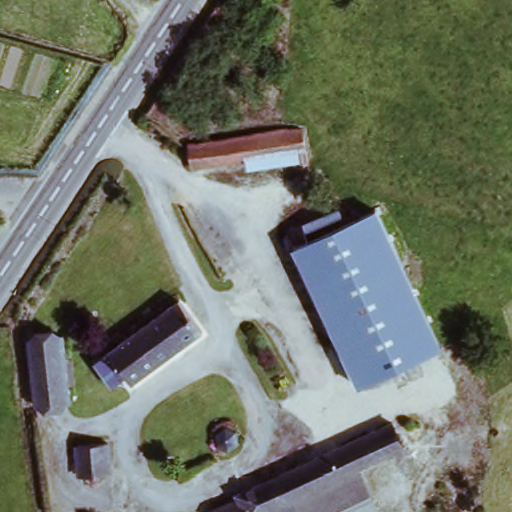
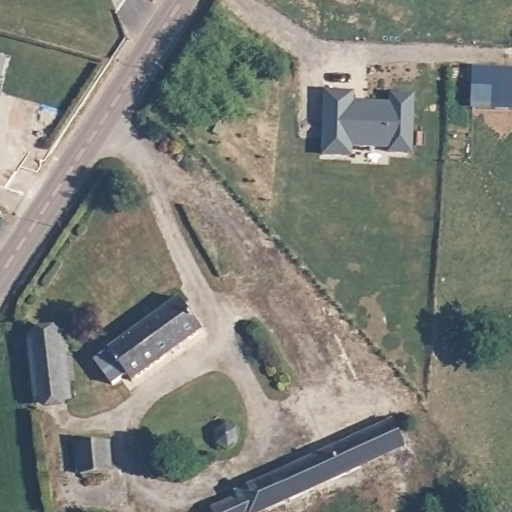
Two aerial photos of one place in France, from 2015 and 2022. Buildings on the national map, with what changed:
new [(482,75),(512,76),(512,107),(481,106),(482,75)]
new [(357,94),(358,104),(391,104),(391,95),(417,95),(415,155),(389,155),(389,150),(353,147),(353,157),(324,158),(326,92),(357,94)]
demolished [(284,151),(194,164),(190,140),(281,127),(284,151)]
demolished [(356,224),(381,211),(448,344),(419,358),(356,224)]
demolished [(419,358),(389,370),(329,237),(356,224),(419,358)]
demolished [(366,381),(301,250),(329,237),(389,370),(366,381)]
unchanged [(119,337),(179,297),(206,329),(143,371),(130,382),(116,361),(128,351),(119,337)]
unchanged [(36,335),(64,331),(73,400),(43,405),(42,398),(35,398),(34,387),(40,386),(36,335)]
unchanged [(216,512),(213,505),(236,494),(234,486),(394,416),(406,441),(357,465),(298,490),(251,512),(216,512)]
unchanged [(75,441),(111,439),(112,465),(74,468),(75,441)]

